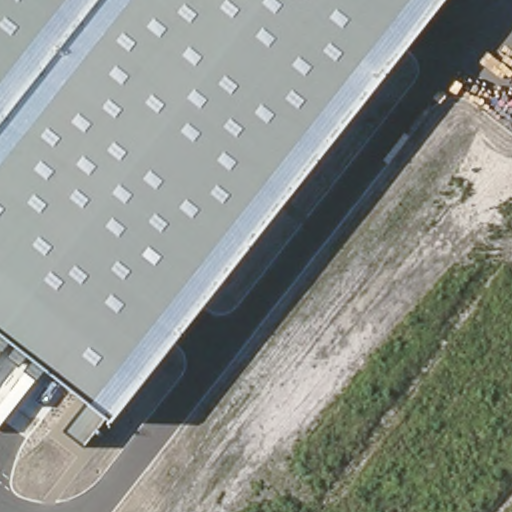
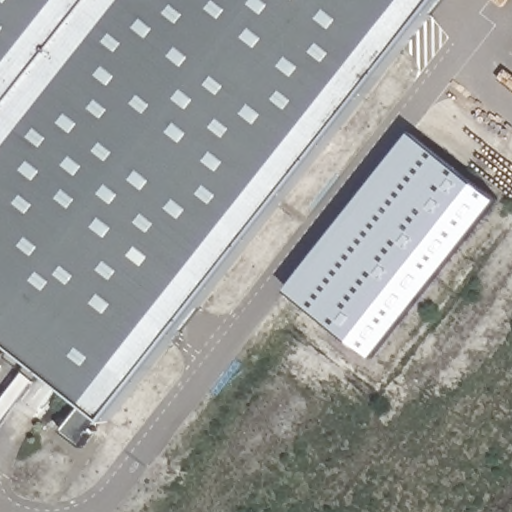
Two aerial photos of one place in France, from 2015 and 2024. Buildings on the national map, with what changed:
unchanged [(106,419),(85,402),(0,334),(0,0),(444,0),(110,422),(106,419)]
new [(496,201),(372,356),(281,288),(408,130),(496,201)]
unchanged [(106,419),(84,448),(63,431),(85,402),(106,419)]

